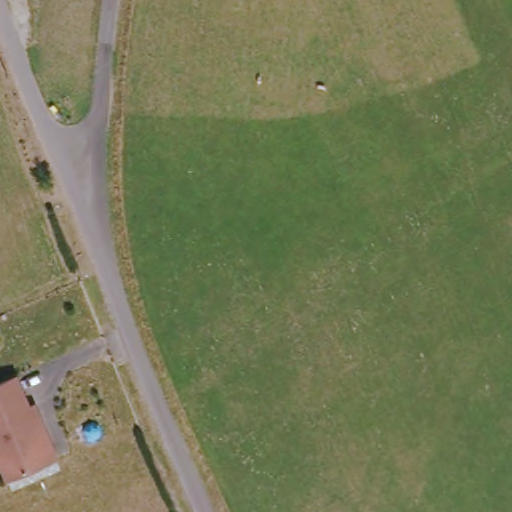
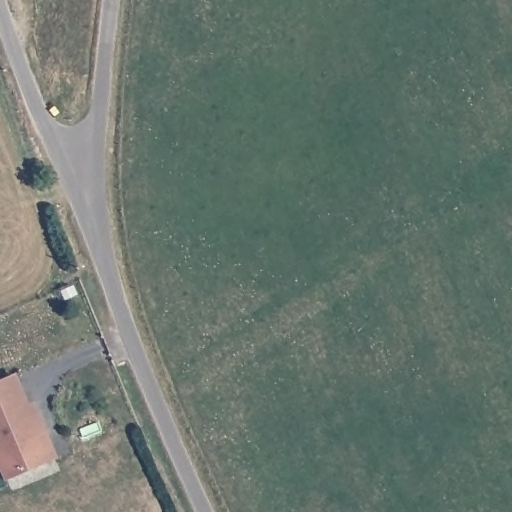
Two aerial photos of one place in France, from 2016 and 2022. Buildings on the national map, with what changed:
unchanged [(57,455),(45,460),(8,477),(0,461),(0,380),(15,373),(27,405),(31,403),(57,455)]

